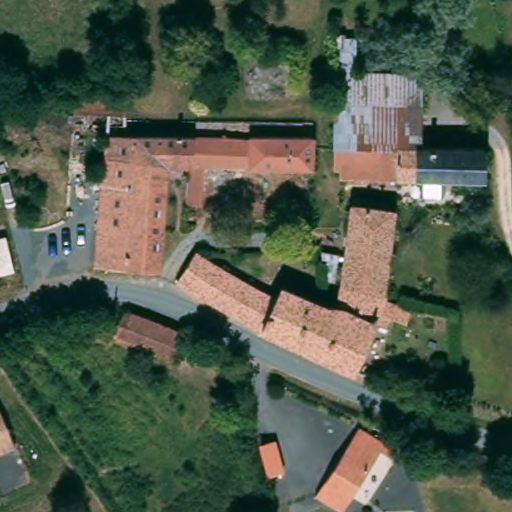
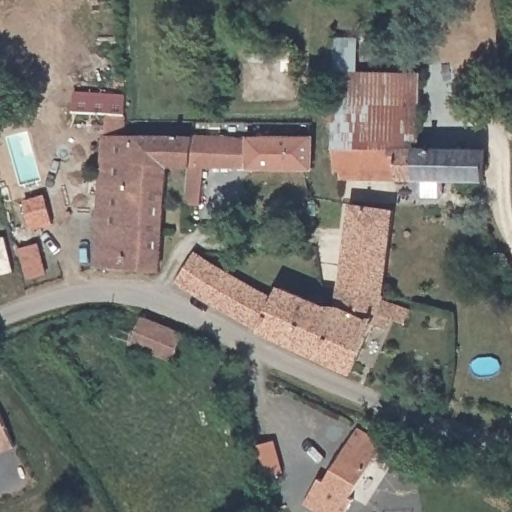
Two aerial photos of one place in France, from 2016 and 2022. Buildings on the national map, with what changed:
unchanged [(417,142),(415,175),(399,175),(398,170),(389,169),(339,168),(340,23),(365,22),(361,66),(426,69),(428,141),(417,142)]
unchanged [(75,108),(78,84),(100,87),(131,91),(128,112),(126,131),(139,133),(138,140),(132,222),(142,224),(163,226),(160,265),(99,259),(111,111),(75,108)]
unchanged [(252,136),(252,131),(273,132),(283,133),(306,134),(314,134),(313,164),(304,164),(206,161),(204,198),(186,197),(188,161),(197,134),(252,136)]
unchanged [(142,224),(132,222),(138,140),(139,133),(197,134),(188,161),(169,160),(164,220),(163,226),(142,224)]
unchanged [(415,175),(417,142),(428,141),(486,144),(487,179),(415,175)]
unchanged [(368,205),(390,209),(391,209),(397,209),(387,297),(385,296),(344,287),(357,204),(368,205)]
unchanged [(199,250),(279,298),(264,329),(182,279),(199,250)]
unchanged [(284,287),(329,306),(326,315),(337,321),(324,354),(264,329),(279,298),(284,287)]
unchanged [(337,321),(326,315),(329,306),(342,307),(344,287),(385,296),(387,297),(387,300),(415,311),(409,324),(390,317),(386,329),(376,326),(359,370),(324,354),(337,321)]
unchanged [(125,314),(175,337),(164,358),(105,333),(114,314),(125,314)]
unchanged [(0,417),(15,447),(0,454),(0,417)]
unchanged [(386,443),(391,437),(402,444),(393,458),(381,450),(338,510),(317,496),(363,428),(386,443)]

